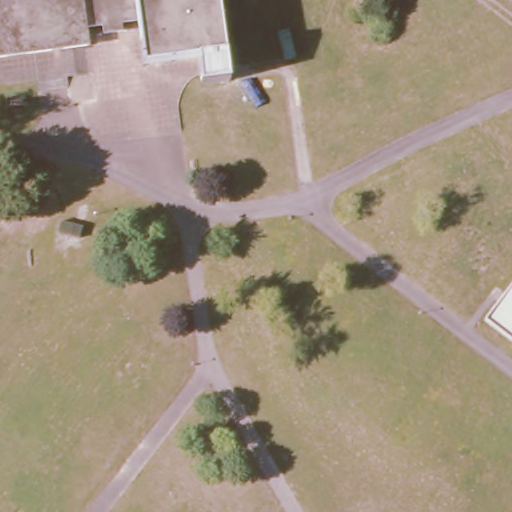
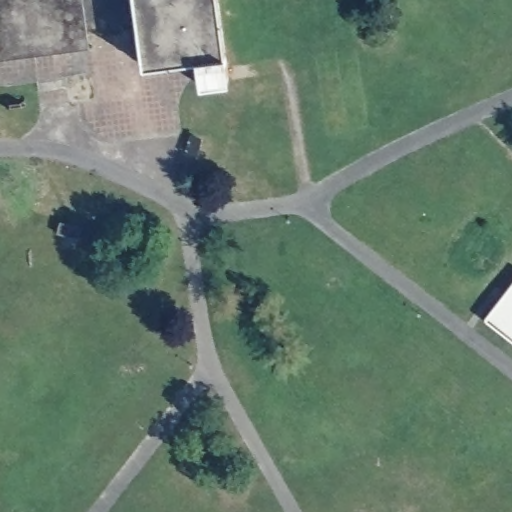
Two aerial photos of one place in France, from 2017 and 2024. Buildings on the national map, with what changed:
unchanged [(198,90),(194,63),(143,68),(137,31),(83,37),(83,44),(0,54),(0,0),(217,0),(229,86),(198,90)]
unchanged [(512,277),(512,336),(483,313),(512,277)]

